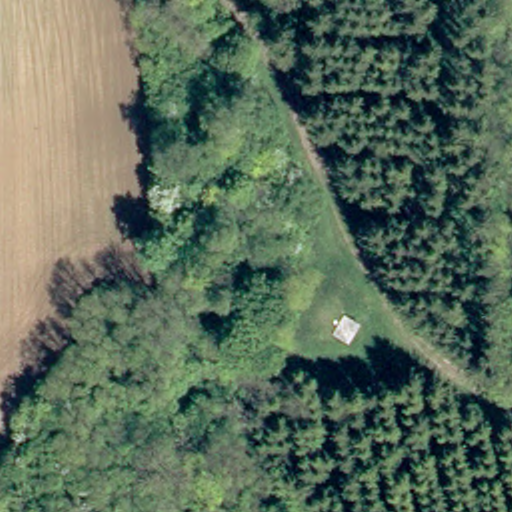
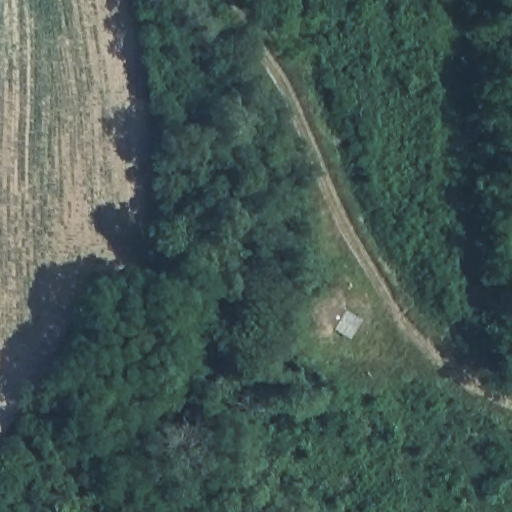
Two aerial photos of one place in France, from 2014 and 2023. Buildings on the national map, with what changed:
unchanged [(348,336),(308,311),(321,294),(358,315),(348,336)]

